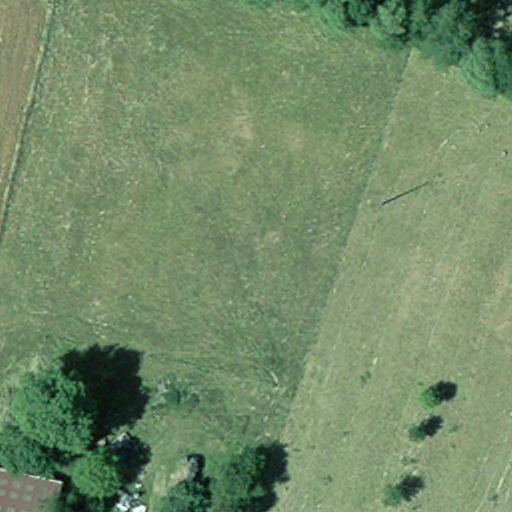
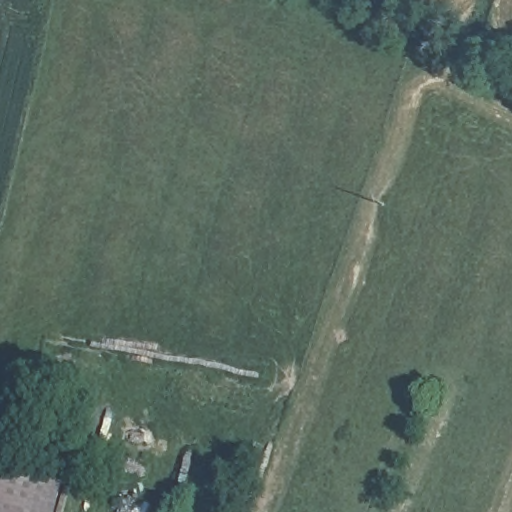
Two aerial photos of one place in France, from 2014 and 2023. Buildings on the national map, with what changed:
unchanged [(52,512),(0,512),(0,464),(60,476),(52,512)]

